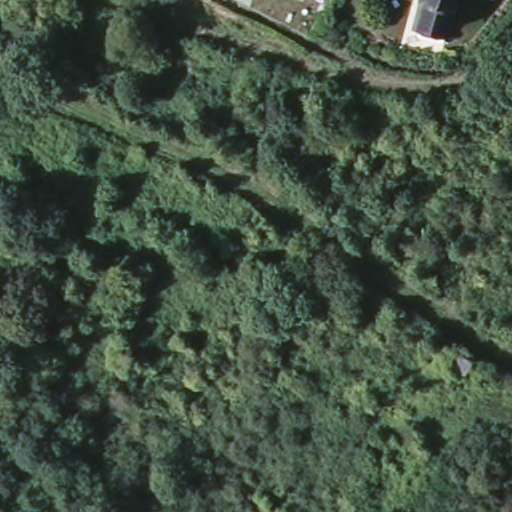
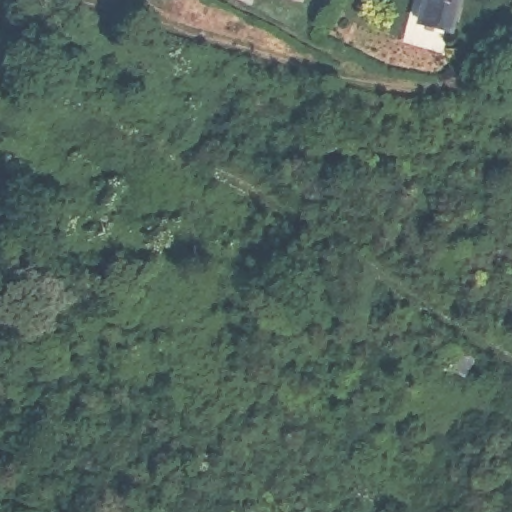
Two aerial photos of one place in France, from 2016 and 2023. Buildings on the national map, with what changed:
unchanged [(445,30),(419,23),(424,4),(425,0),(454,0),(445,30)]
unchanged [(461,375),(437,361),(446,346),(470,360),(461,375)]

